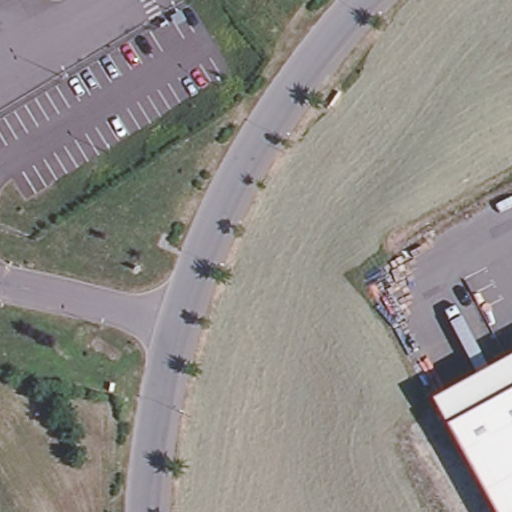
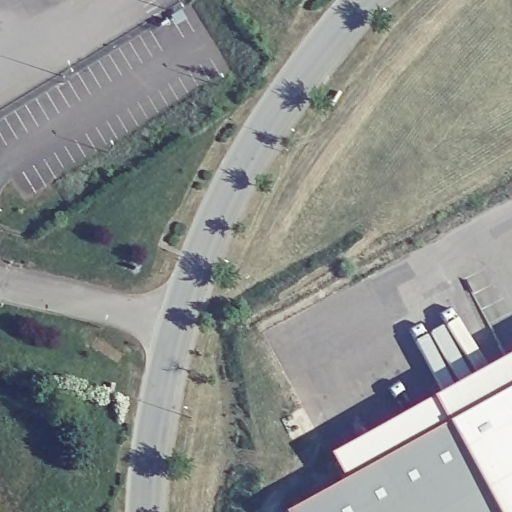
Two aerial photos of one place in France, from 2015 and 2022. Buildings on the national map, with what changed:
unchanged [(432,401),(512,356),(512,512),(495,512),(432,401)]
new [(495,512),(290,512),(343,483),(329,458),(432,401),(495,512)]

